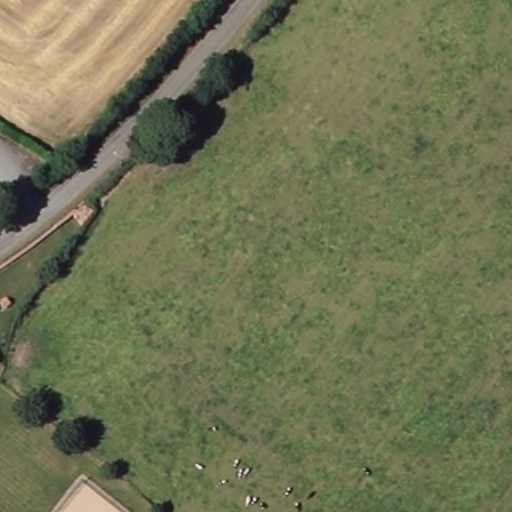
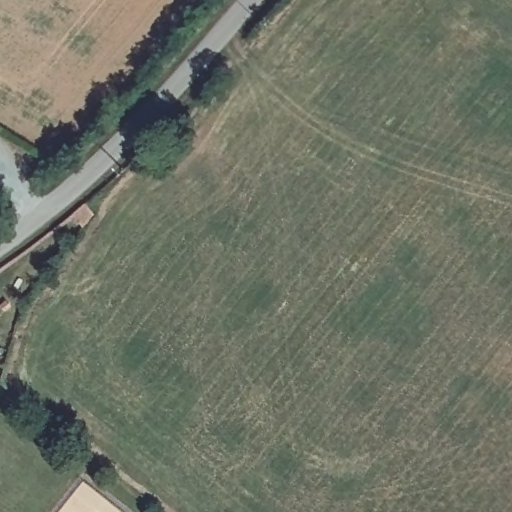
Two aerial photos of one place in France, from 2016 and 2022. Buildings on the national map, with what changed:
unchanged [(104,208),(80,237),(67,225),(95,199),(104,208)]

